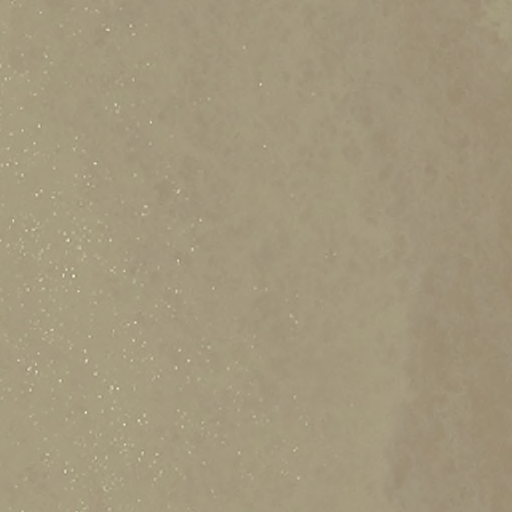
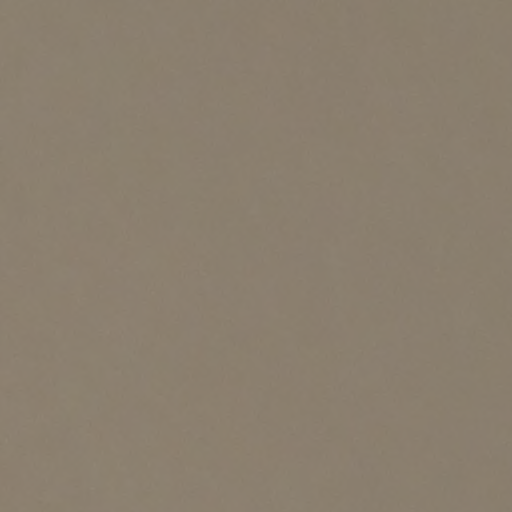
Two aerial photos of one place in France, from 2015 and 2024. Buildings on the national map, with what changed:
[]

